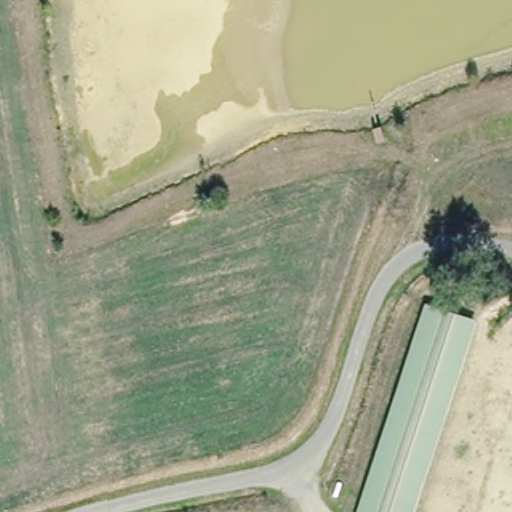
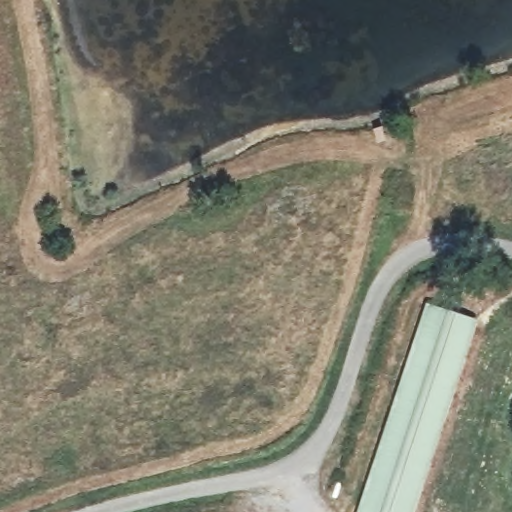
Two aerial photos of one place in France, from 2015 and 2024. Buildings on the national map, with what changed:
unchanged [(423,476),(409,512),(359,512),(375,470),(438,305),(482,322),(423,476)]

